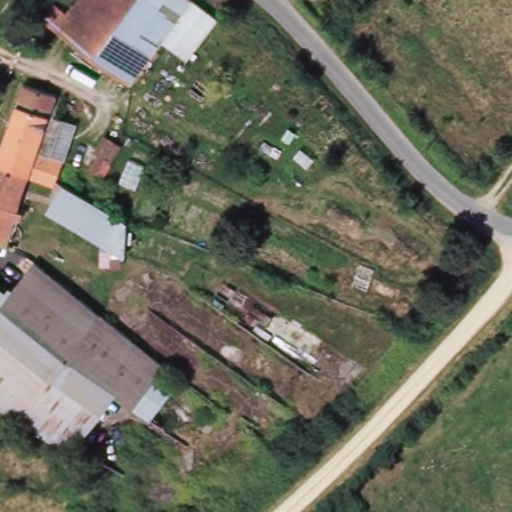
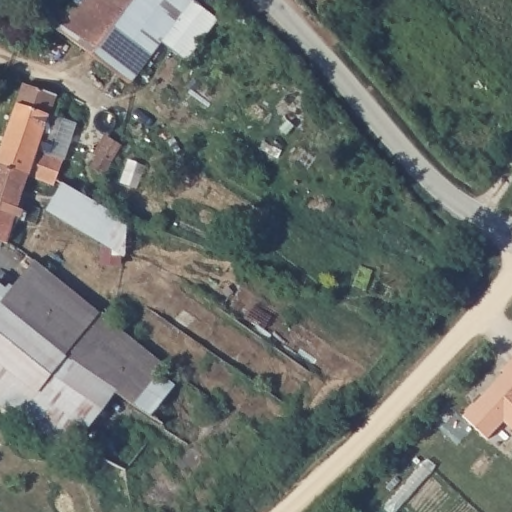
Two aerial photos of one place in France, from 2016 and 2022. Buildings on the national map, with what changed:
unchanged [(135,85),(48,20),(60,4),(71,12),(81,0),(198,0),(167,42),(135,85)]
unchanged [(192,59),(167,42),(198,0),(199,0),(222,19),(192,59)]
unchanged [(69,161),(61,181),(60,186),(34,176),(32,175),(2,163),(30,84),(61,96),(55,116),(67,120),(81,124),(69,161)]
unchanged [(345,110),(334,121),(317,104),(327,94),(345,110)]
unchanged [(117,162),(109,175),(96,167),(104,155),(117,162)]
unchanged [(32,175),(28,191),(20,217),(12,242),(0,239),(0,168),(2,163),(32,175)]
unchanged [(132,222),(130,256),(52,210),(67,184),(132,222)]
unchanged [(171,366),(141,402),(169,424),(131,472),(38,431),(23,420),(0,402),(0,301),(4,305),(40,261),(171,366)]
new [(487,439),(463,417),(503,373),(501,372),(512,360),(512,430),(504,422),(487,439)]

